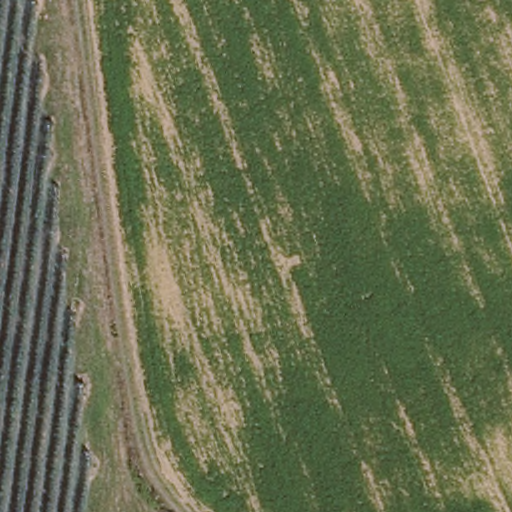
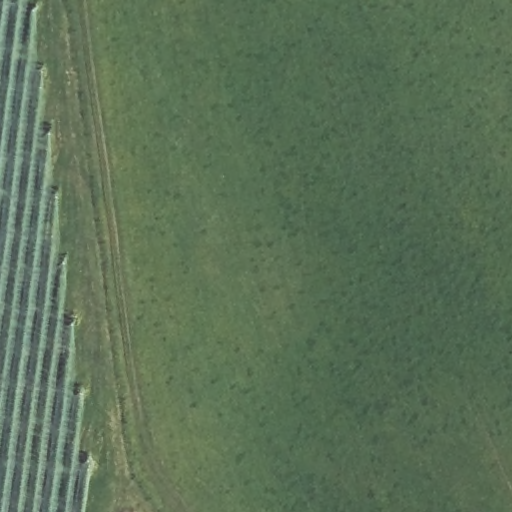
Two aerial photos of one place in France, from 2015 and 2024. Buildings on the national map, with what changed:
[]

